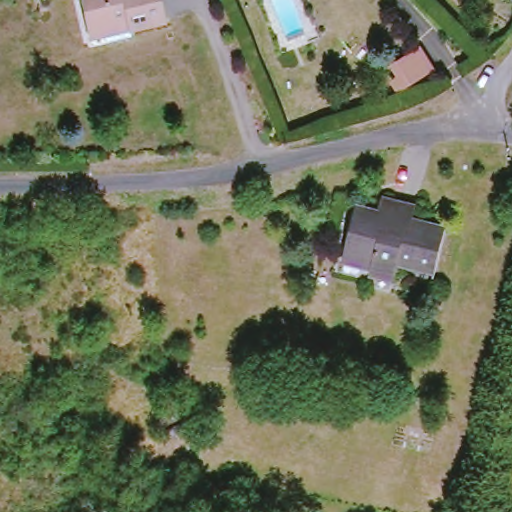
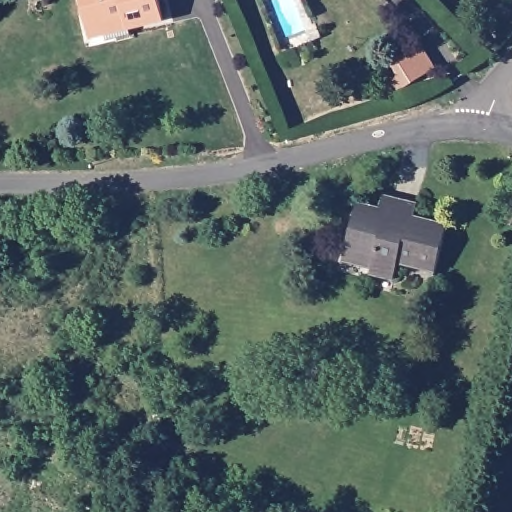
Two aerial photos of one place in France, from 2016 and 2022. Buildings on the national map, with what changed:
unchanged [(92,33),(83,0),(159,0),(165,24),(132,32),(96,42),(92,33)]
unchanged [(352,257),(362,209),(387,214),(391,197),(422,204),(419,219),(451,225),(442,272),(405,264),(401,283),(377,280),(379,273),(349,267),(352,257)]

